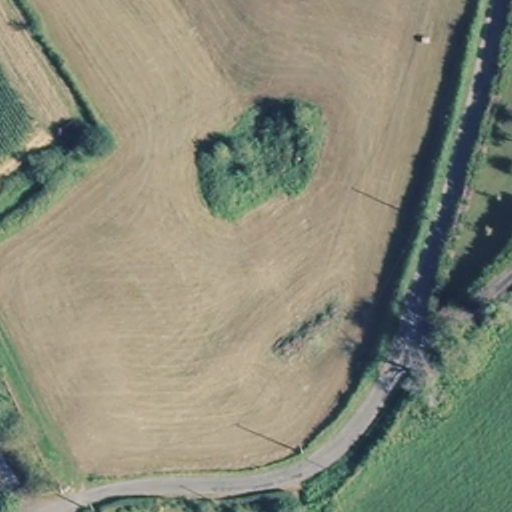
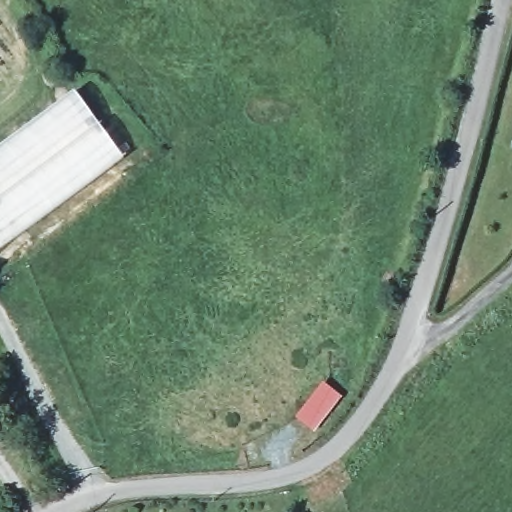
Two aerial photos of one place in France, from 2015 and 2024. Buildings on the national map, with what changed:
new [(125,156),(0,248),(0,146),(77,90),(125,156)]

